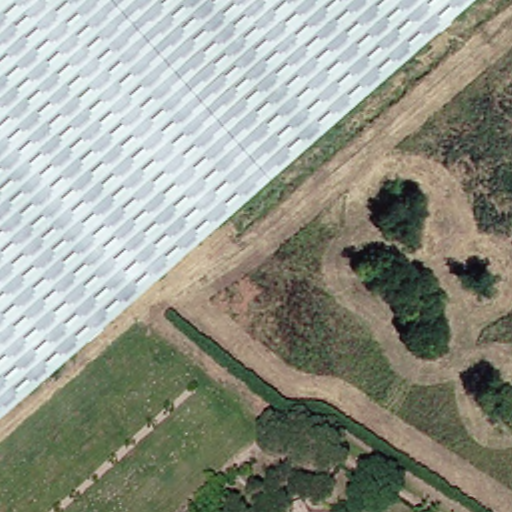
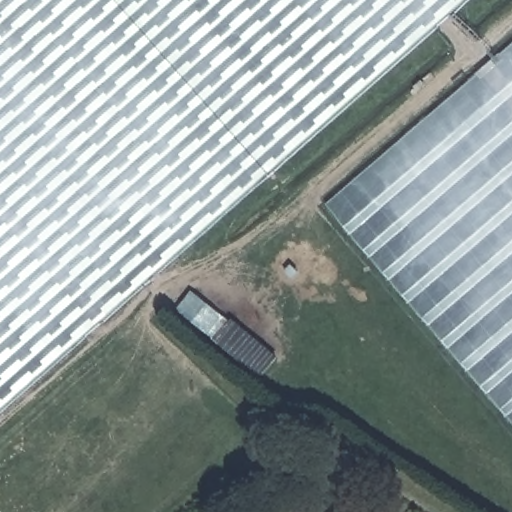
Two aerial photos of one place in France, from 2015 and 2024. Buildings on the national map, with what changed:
unchanged [(0,0),(107,0),(260,172),(0,401),(0,0)]
unchanged [(260,172),(107,0),(454,0),(260,172)]
new [(512,44),(512,421),(327,203),(512,44)]

